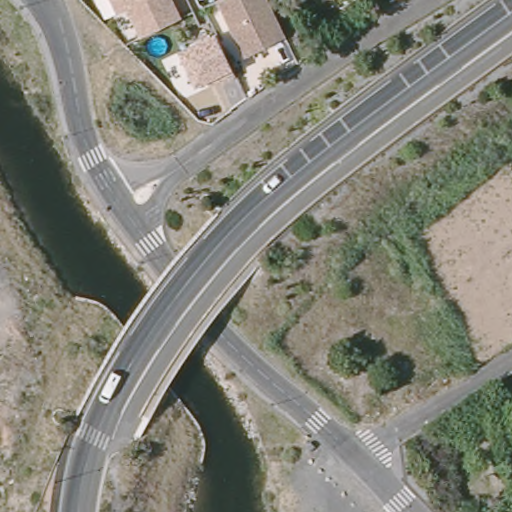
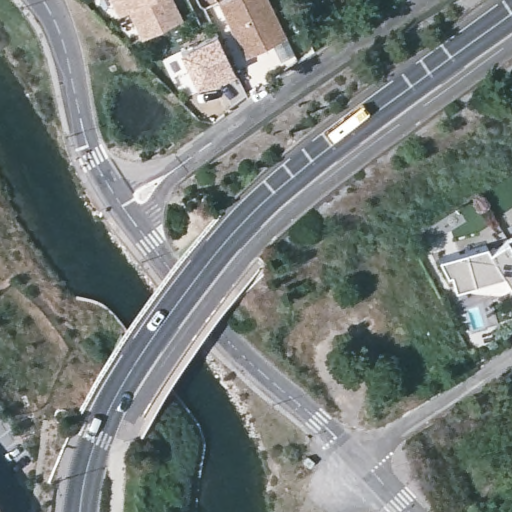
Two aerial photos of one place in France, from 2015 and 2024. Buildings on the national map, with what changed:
unchanged [(122,6),(112,11),(107,0),(167,0),(175,16),(136,35),(122,6)]
unchanged [(243,55),(216,0),(267,0),(284,35),(243,55)]
unchanged [(200,79),(191,83),(174,49),(210,32),(230,72),(215,80),(214,77),(202,83),(200,79)]
new [(490,251),(512,237),(512,286),(505,275),(456,291),(451,275),(448,276),(439,260),(487,245),(490,251)]
new [(1,512),(0,512),(0,510),(1,512)]

